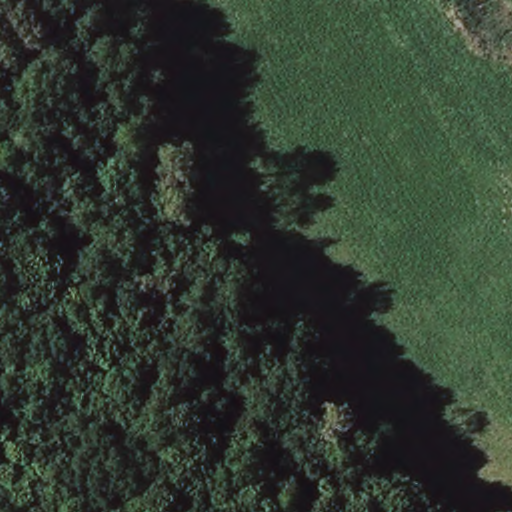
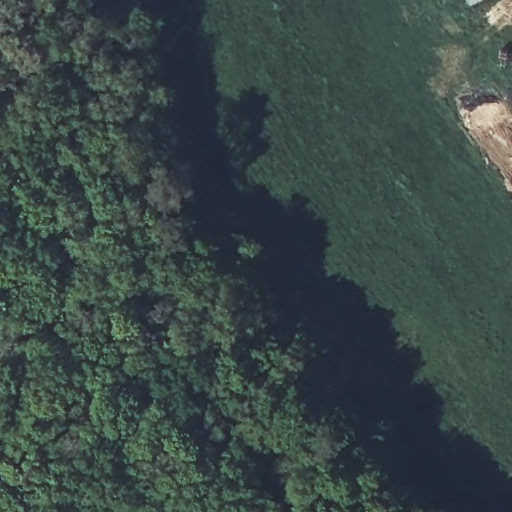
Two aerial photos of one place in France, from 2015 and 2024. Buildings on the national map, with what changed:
[]

